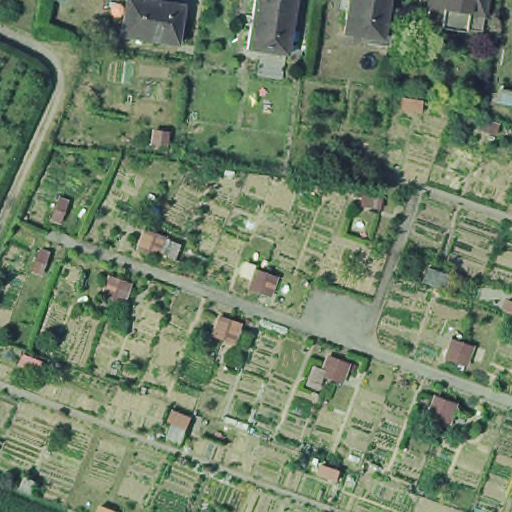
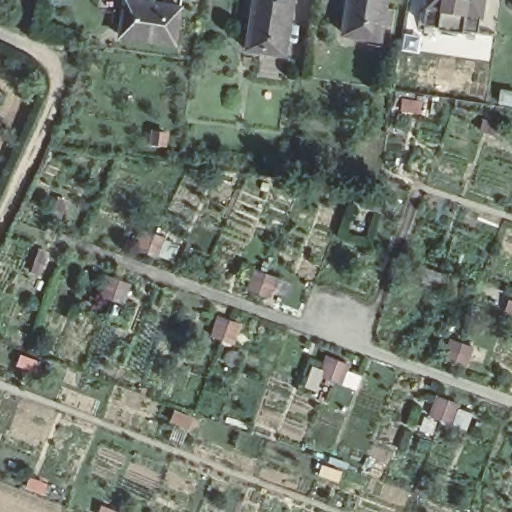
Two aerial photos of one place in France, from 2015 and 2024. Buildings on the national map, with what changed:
unchanged [(121,0),(131,0),(177,6),(171,44),(116,36),(121,0)]
unchanged [(280,54),(243,48),(250,0),(288,0),(280,54)]
unchanged [(384,52),(372,50),(373,43),(339,38),(344,5),(334,3),(335,0),(383,0),(381,12),(390,14),(384,52)]
unchanged [(460,29),(460,32),(434,28),(434,25),(420,23),(422,7),(423,0),(479,0),(477,15),(475,31),(460,29)]
unchanged [(167,133),(165,144),(152,142),(154,131),(167,133)]

